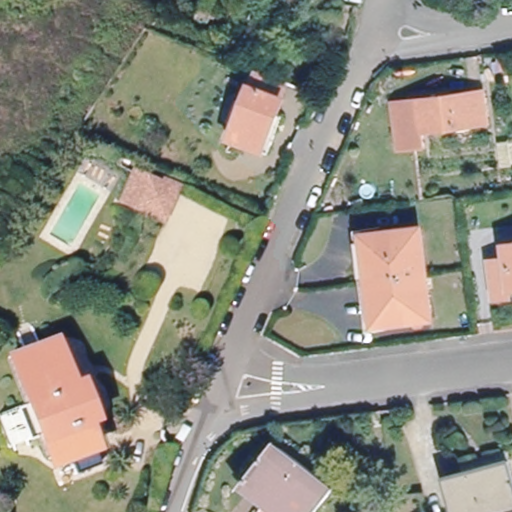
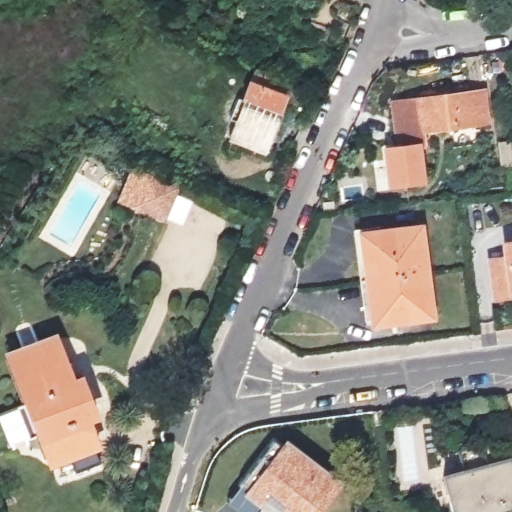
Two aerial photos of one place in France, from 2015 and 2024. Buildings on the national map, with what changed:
unchanged [(220,128),(229,106),(235,109),(247,78),(279,90),(265,123),(273,127),(258,162),(219,146),(226,130),(220,128)]
unchanged [(392,102),(482,89),(487,121),(444,128),(445,141),(398,148),(392,102)]
new [(387,188),(382,150),(398,148),(421,145),(425,184),(387,188)]
unchanged [(174,187),(160,222),(116,203),(130,169),(174,187)]
unchanged [(416,231),(430,320),(395,325),(374,328),(362,240),(382,237),(416,231)]
unchanged [(512,258),(512,304),(511,304),(511,309),(490,311),(485,275),(502,274),(500,259),(512,258)]
unchanged [(12,408),(21,404),(1,356),(46,338),(66,386),(75,382),(88,415),(79,418),(89,442),(88,442),(95,461),(76,468),(69,449),(43,459),(34,436),(24,440),(21,432),(14,415),(12,408)]
unchanged [(239,482),(246,474),(273,436),(337,485),(317,512),(277,512),(263,501),(239,482)]
unchanged [(512,478),(512,512),(448,512),(440,483),(462,477),(460,467),(506,456),(512,478)]

